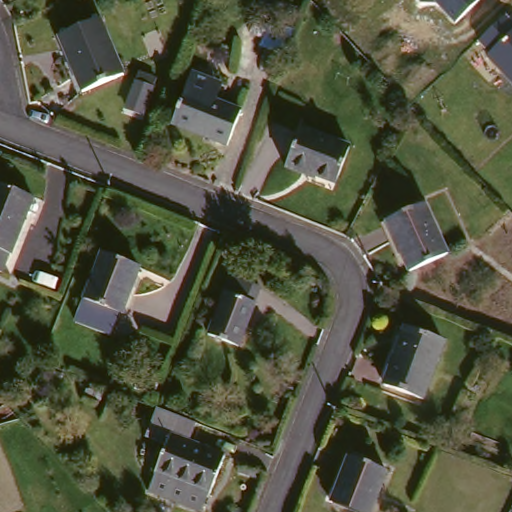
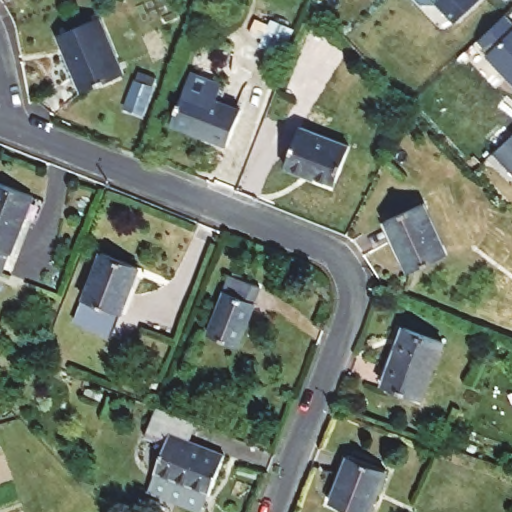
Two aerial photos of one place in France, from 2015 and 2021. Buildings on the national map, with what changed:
unchanged [(438,4),(422,5),(417,0),(481,0),(456,22),(438,4)]
unchanged [(487,55),(490,51),(479,40),(506,15),(512,21),(512,81),(487,55)]
unchanged [(78,90),(55,33),(96,16),(120,74),(78,90)]
unchanged [(224,147),(168,126),(181,91),(237,112),(224,147)]
unchanged [(331,184),(301,172),(298,179),(279,171),(296,129),(344,147),(331,184)]
new [(493,153),(512,135),(512,174),(493,153)]
unchanged [(1,253),(0,257),(0,189),(28,200),(8,255),(1,253)]
unchanged [(438,260),(402,275),(381,225),(419,209),(439,256),(438,260)]
unchanged [(130,285),(125,283),(114,312),(80,300),(96,255),(136,270),(130,285)]
unchanged [(232,350),(204,338),(228,279),(257,290),(232,350)]
unchanged [(417,400),(380,385),(402,328),(439,342),(417,400)]
unchanged [(187,443),(221,457),(205,496),(202,495),(151,476),(150,475),(163,438),(145,432),(155,410),(156,410),(194,425),(187,443)]
unchanged [(350,512),(326,503),(334,482),(338,483),(347,457),(381,470),(365,512),(350,512)]
unchanged [(195,512),(181,512),(143,497),(151,476),(202,495),(195,512)]

